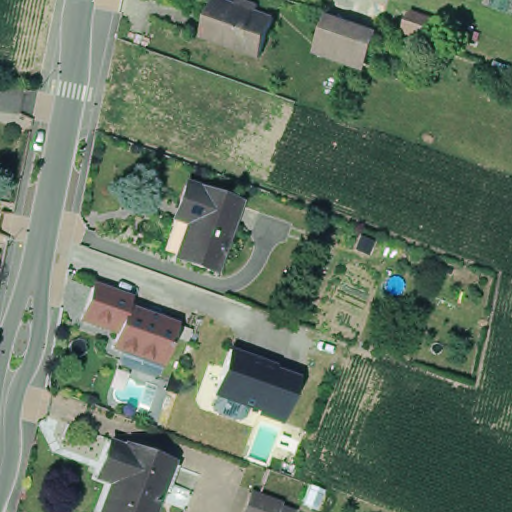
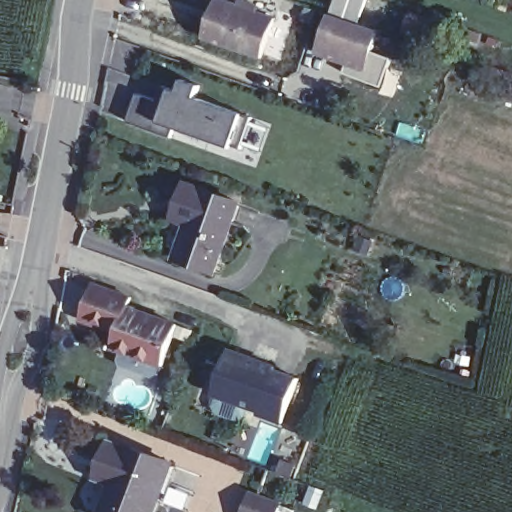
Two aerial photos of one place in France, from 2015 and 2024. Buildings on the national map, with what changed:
unchanged [(255,52),(198,32),(209,0),(230,0),(269,14),(255,52)]
unchanged [(333,50),(315,43),(326,10),(345,17),(376,28),(364,60),(333,50)]
new [(136,94),(158,102),(163,89),(168,91),(177,94),(181,82),(198,87),(193,99),(241,116),(251,119),(241,149),(231,146),(231,149),(176,130),(173,139),(126,122),(136,94)]
unchanged [(241,204),(217,273),(176,259),(192,216),(178,211),(186,188),(199,194),(201,190),(241,204)]
unchanged [(114,351),(118,334),(83,321),(96,285),(131,298),(128,307),(178,325),(163,367),(114,351)]
unchanged [(284,424),(261,417),(262,412),(216,397),(231,351),(301,376),(284,424)]
unchanged [(168,458),(150,512),(94,512),(111,465),(96,459),(104,441),(118,446),(120,441),(168,458)]
unchanged [(291,508),(289,512),(256,512),(261,497),(291,508)]

